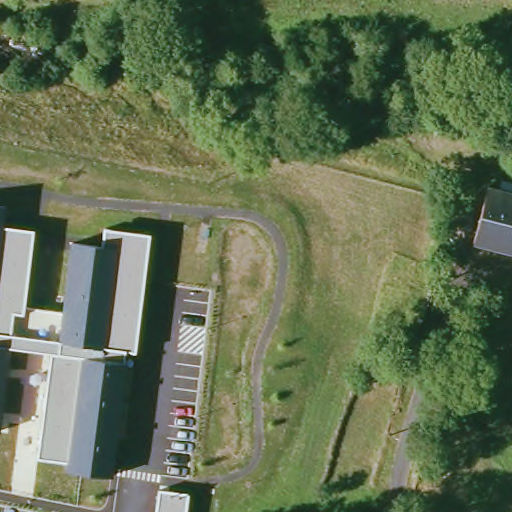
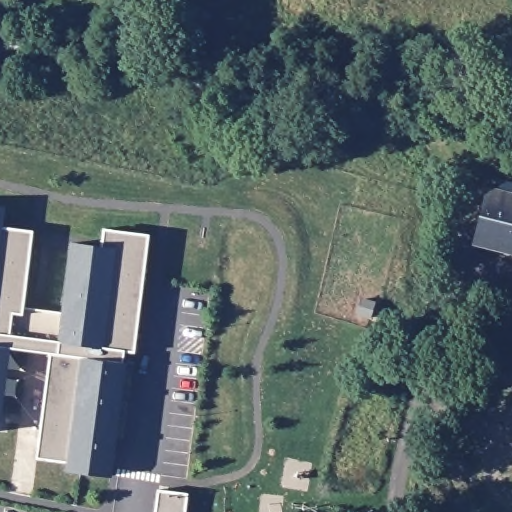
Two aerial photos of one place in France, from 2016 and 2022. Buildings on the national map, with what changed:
unchanged [(503,247),(465,226),(477,184),(512,194),(512,249),(503,247)]
unchanged [(4,228),(35,230),(25,305),(63,309),(72,242),(102,247),(104,229),(151,235),(136,352),(125,350),(124,363),(127,362),(112,476),(67,470),(67,461),(39,459),(51,354),(11,348),(0,427),(0,207),(5,208),(4,228)]
unchanged [(186,512),(156,512),(158,490),(189,494),(186,512)]

